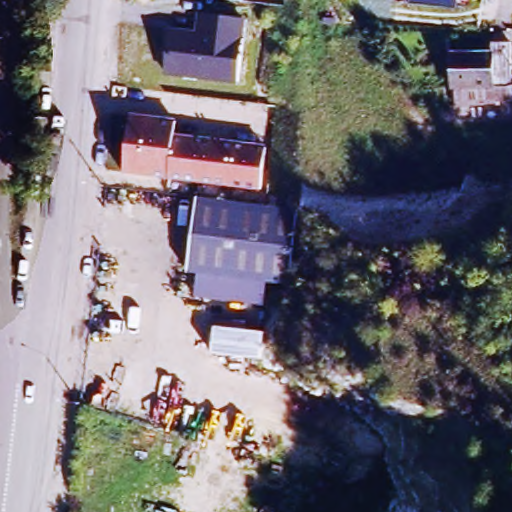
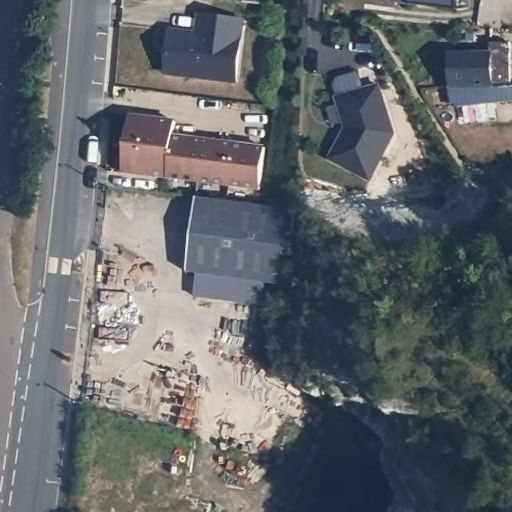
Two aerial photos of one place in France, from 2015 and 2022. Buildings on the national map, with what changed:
unchanged [(395,3),(395,0),(459,0),(459,11),(411,6),(395,3)]
unchanged [(197,31),(199,14),(245,19),(239,84),(164,75),(169,28),(197,31)]
unchanged [(493,42),(509,42),(509,87),(512,86),(512,99),(455,102),(455,85),(452,85),(452,51),(492,52),(493,42)]
new [(342,139),(344,141),(351,129),(348,127),(340,97),(382,86),(394,134),(367,180),(331,158),(342,139)]
unchanged [(176,137),(267,146),(261,191),(125,174),(132,115),(177,120),(176,137)]
unchanged [(294,280),(287,279),(287,282),(264,281),(262,303),(196,297),(197,275),(188,273),(195,199),(286,207),(300,208),(294,280)]

